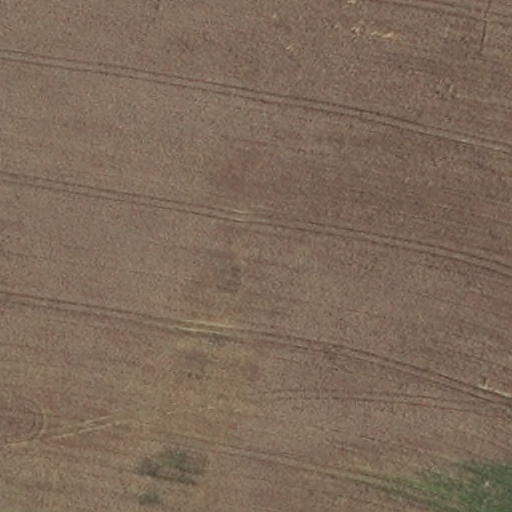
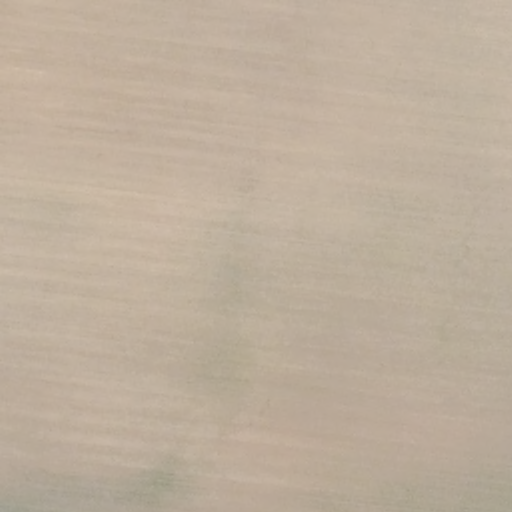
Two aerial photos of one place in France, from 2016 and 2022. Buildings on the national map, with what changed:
[]

